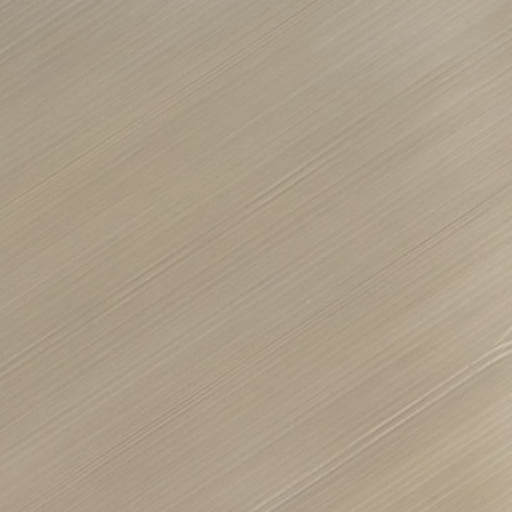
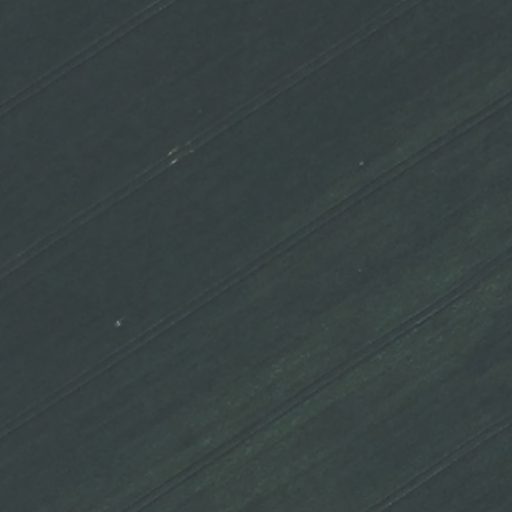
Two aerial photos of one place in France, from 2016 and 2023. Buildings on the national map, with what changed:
[]

